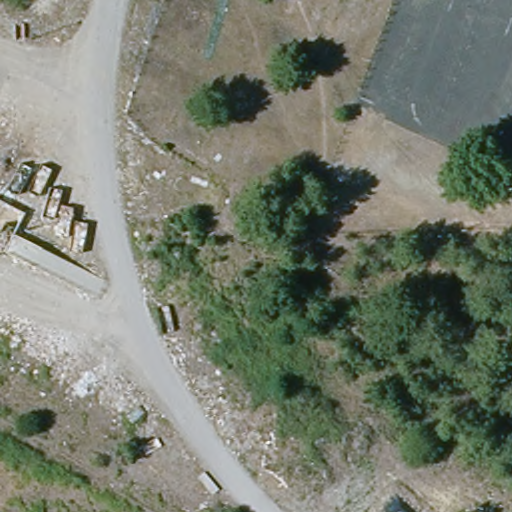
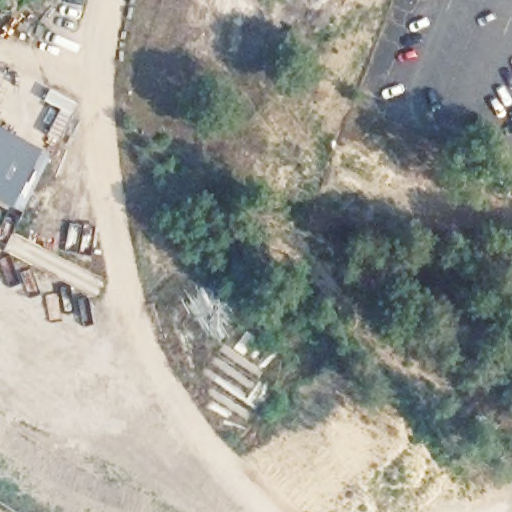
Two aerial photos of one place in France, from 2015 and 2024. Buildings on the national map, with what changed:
unchanged [(281,1),(278,0),(282,0),(281,1)]
new [(49,89),(76,104),(57,141),(45,135),(59,109),(43,100),(49,89)]
new [(50,154),(39,175),(35,174),(12,208),(0,201),(0,126),(6,129),(50,154)]

